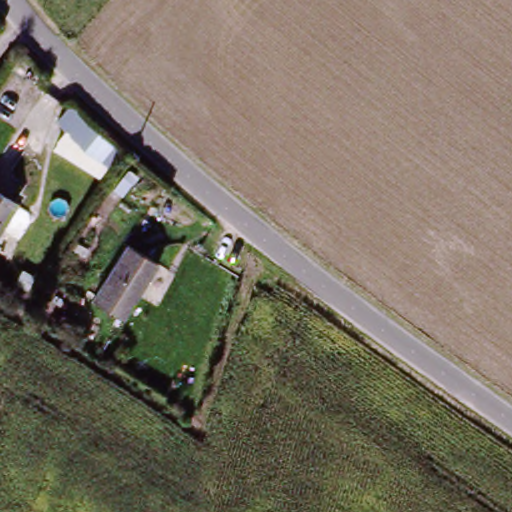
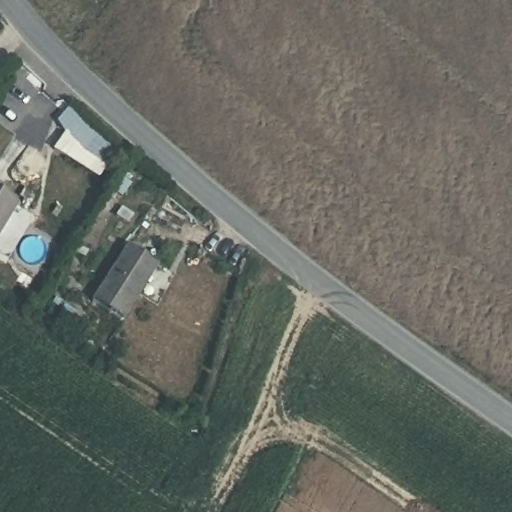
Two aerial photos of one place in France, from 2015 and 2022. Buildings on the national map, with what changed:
unchanged [(0,236),(0,198),(18,211),(0,236)]
unchanged [(142,285),(118,321),(87,298),(110,261),(120,245),(152,269),(142,285)]

